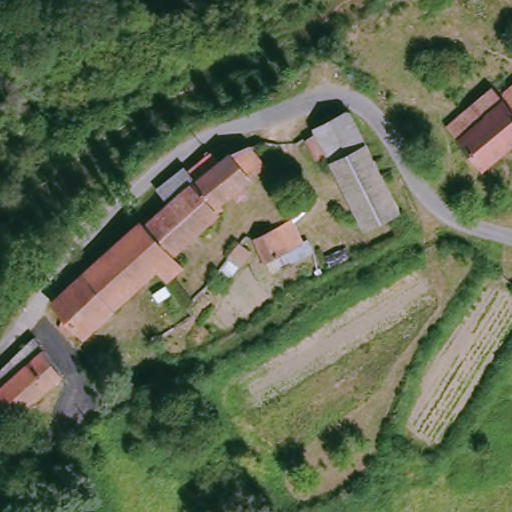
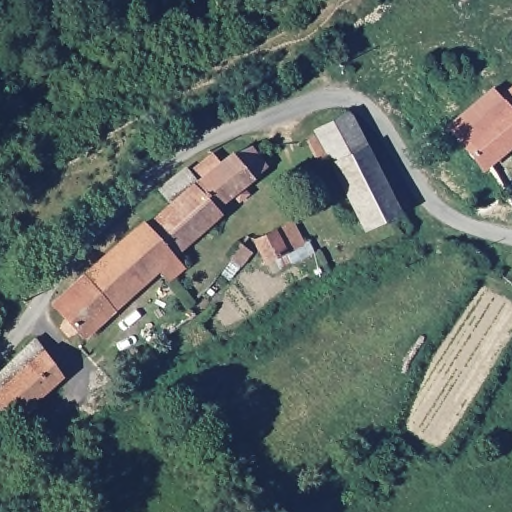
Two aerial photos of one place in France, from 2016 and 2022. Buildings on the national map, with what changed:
unchanged [(502,102),(512,94),(512,148),(490,167),(485,171),(448,130),(493,93),(502,102)]
unchanged [(335,164),(319,131),(353,113),(370,145),(335,164)]
unchanged [(370,231),(350,192),(335,164),(370,145),(405,214),(370,231)]
unchanged [(174,206),(162,192),(181,175),(194,190),(202,184),(194,174),(215,155),(227,162),(235,155),(238,159),(250,150),(267,169),(221,211),(220,221),(177,260),(149,227),(174,206)]
unchanged [(315,257),(279,275),(274,265),(270,266),(257,242),(276,232),(292,223),(305,250),(309,247),(315,257)]
unchanged [(188,272),(171,287),(161,275),(87,340),(80,333),(69,342),(60,331),(69,320),(56,305),(145,224),(149,227),(177,260),(188,272)]
unchanged [(241,246),(254,255),(247,270),(233,261),(241,246)]
unchanged [(59,376),(22,416),(8,417),(0,410),(0,374),(33,337),(59,376)]

